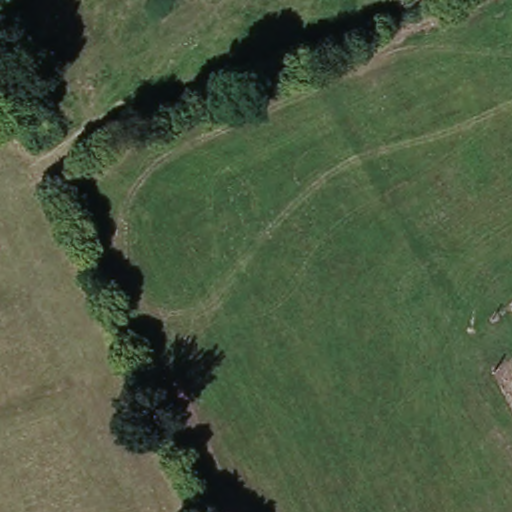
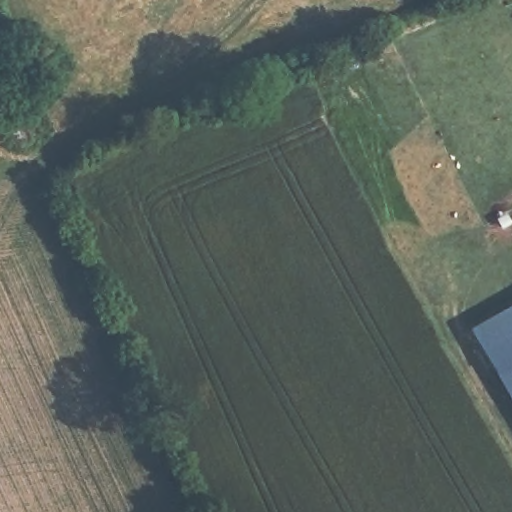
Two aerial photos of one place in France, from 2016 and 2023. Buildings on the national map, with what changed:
new [(467,327),(512,303),(512,403),(493,368),(467,327)]

